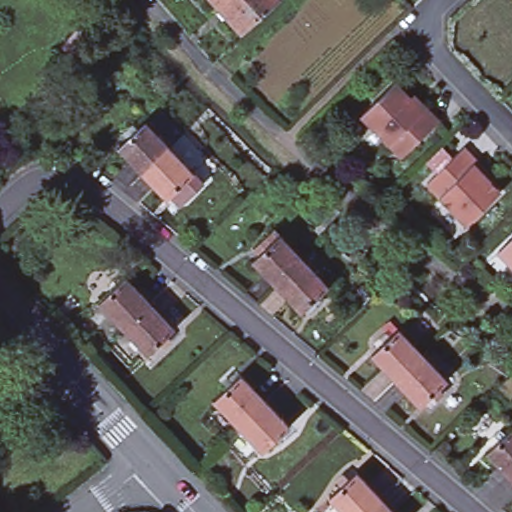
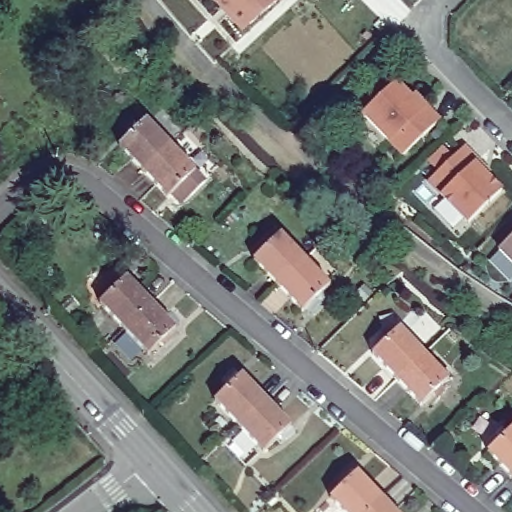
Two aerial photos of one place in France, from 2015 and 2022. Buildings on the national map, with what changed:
unchanged [(240,29),(214,0),(271,0),(240,29)]
unchanged [(411,97),(415,94),(440,120),(405,154),(365,112),(395,81),(411,97)]
unchanged [(142,170),(119,146),(146,121),(169,145),(142,170)]
unchanged [(168,195),(167,196),(142,170),(169,145),(194,170),(203,180),(188,194),(187,192),(177,203),(168,195)]
unchanged [(467,223),(440,195),(427,181),(462,147),(475,161),(485,171),(482,174),(499,191),(467,223)]
unchanged [(252,258),(263,247),(257,241),(272,227),(278,234),(302,258),(277,283),(252,258)]
unchanged [(512,236),(512,261),(499,248),(512,236)]
unchanged [(302,258),(327,283),(302,307),(277,283),(302,258)]
unchanged [(120,327),(97,302),(124,276),(147,301),(120,327)]
unchanged [(161,350),(156,345),(146,353),(120,327),(147,301),(173,328),(165,336),(170,341),(161,350)]
unchanged [(400,379),(373,353),(401,327),(426,354),(400,379)]
unchanged [(437,403),(432,398),(425,405),(400,379),(426,354),(451,380),(441,390),(446,395),(437,403)]
unchanged [(241,424),(217,398),(245,374),(267,398),(241,424)]
unchanged [(267,398),(291,424),(264,450),(241,424),(267,398)]
unchanged [(485,451),(511,426),(512,425),(512,480),(509,476),(485,451)]
unchanged [(335,483),(345,473),(348,478),(355,471),(378,496),(362,512),(344,512),(329,496),(338,487),(335,483)]
unchanged [(393,512),(362,512),(378,496),(393,512)]

